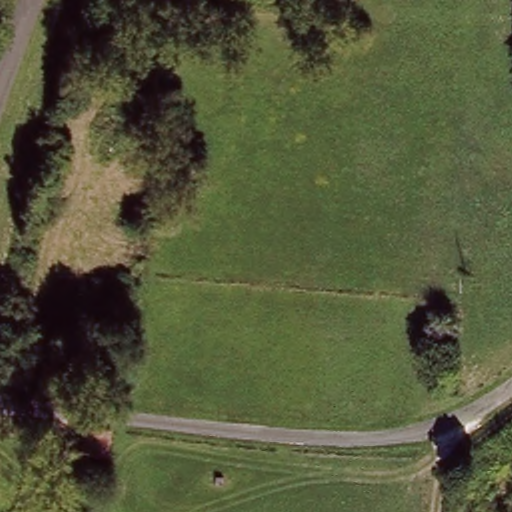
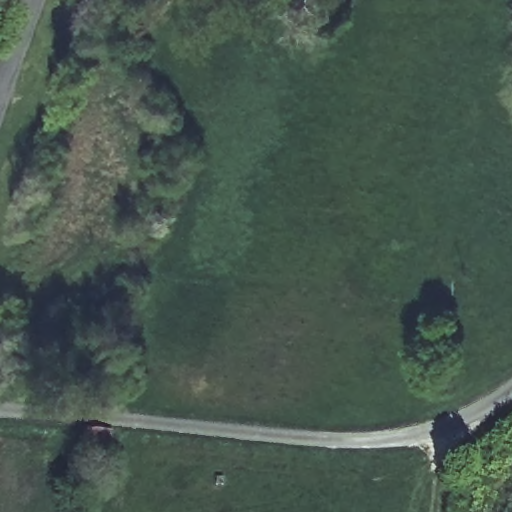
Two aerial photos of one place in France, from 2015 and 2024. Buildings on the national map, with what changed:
unchanged [(116,430),(115,451),(88,451),(87,429),(116,430)]

